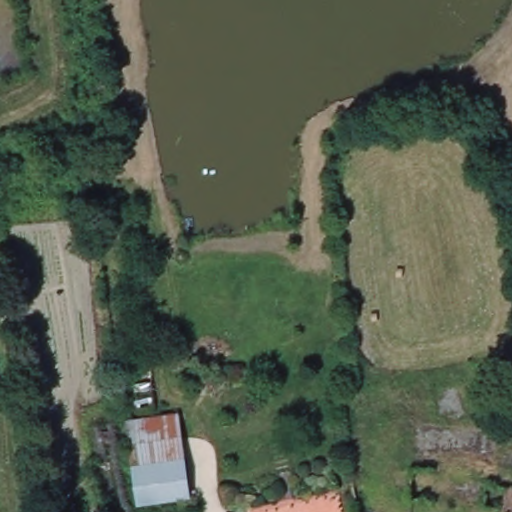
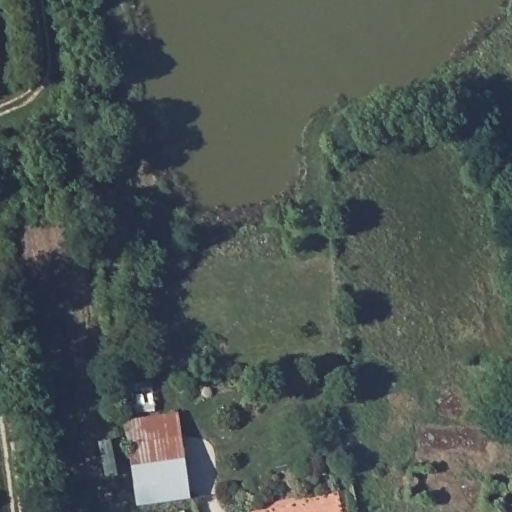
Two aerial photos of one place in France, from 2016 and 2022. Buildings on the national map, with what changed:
unchanged [(193,496),(143,504),(131,422),(182,415),(193,496)]
unchanged [(510,485),(512,485),(512,512),(506,512),(510,485)]

